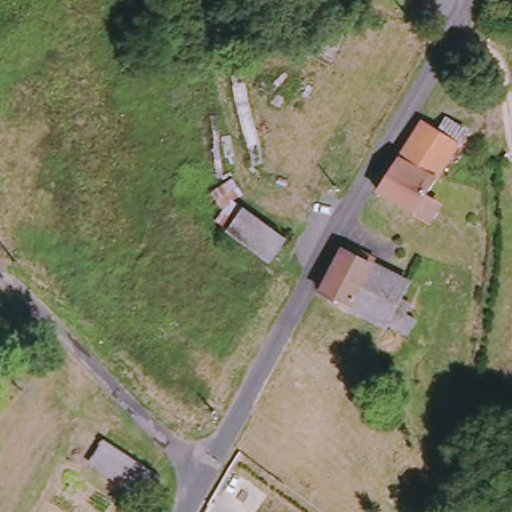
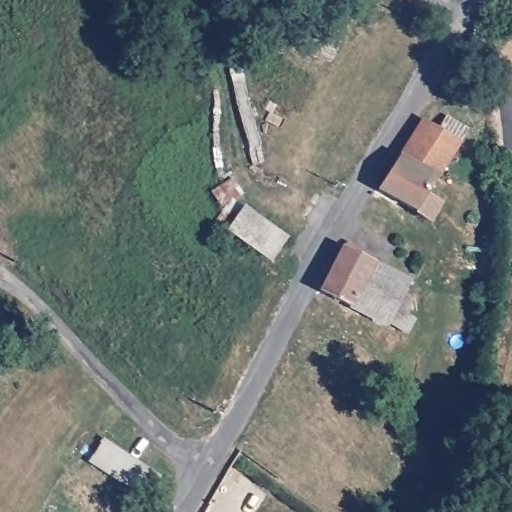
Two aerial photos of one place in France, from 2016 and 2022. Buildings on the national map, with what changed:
unchanged [(440,119),(461,130),(454,143),(446,158),(437,175),(419,166),(399,202),(380,192),(410,139),(420,123),(431,129),(433,131),(440,119)]
unchanged [(419,166),(437,175),(426,196),(438,202),(428,218),(399,202),(419,166)]
unchanged [(238,215),(282,238),(268,263),(224,238),(238,215)]
unchanged [(376,262),(374,269),(403,287),(383,326),(322,292),(349,245),(376,262)]
unchanged [(90,467),(108,440),(168,479),(151,505),(90,467)]

